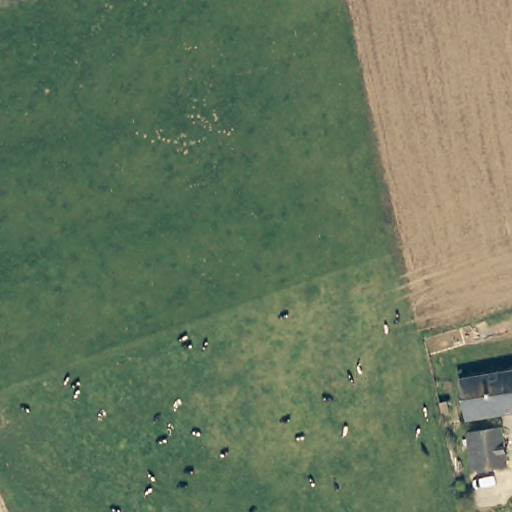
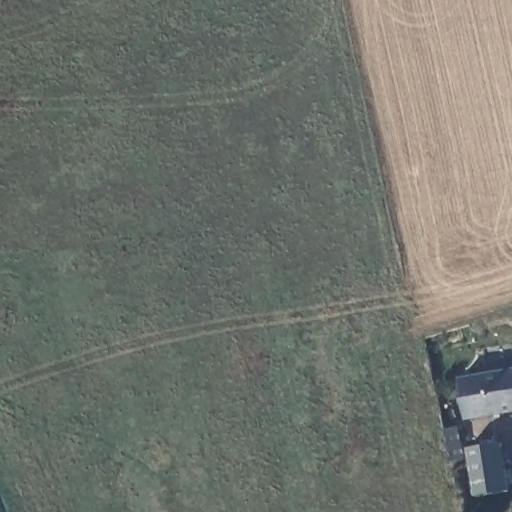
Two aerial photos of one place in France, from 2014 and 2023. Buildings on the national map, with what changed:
unchanged [(512,368),(512,411),(488,414),(481,374),(512,368)]
unchanged [(488,414),(463,417),(457,378),(481,374),(488,414)]
unchanged [(494,427),(499,466),(466,471),(461,432),(494,427)]

